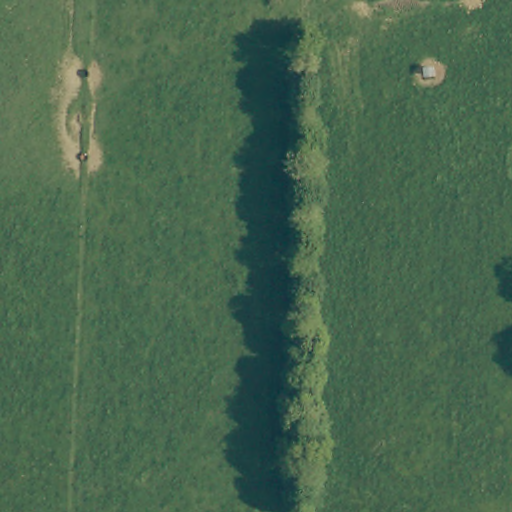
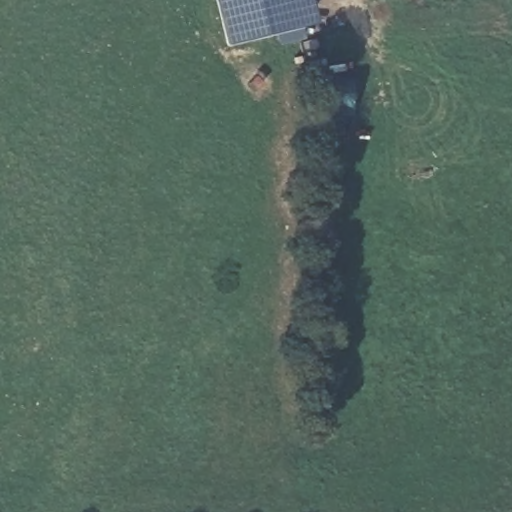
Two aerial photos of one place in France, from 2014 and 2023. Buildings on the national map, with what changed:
new [(280,44),(278,35),(226,47),(215,0),(294,0),(301,30),(303,38),(280,44)]

